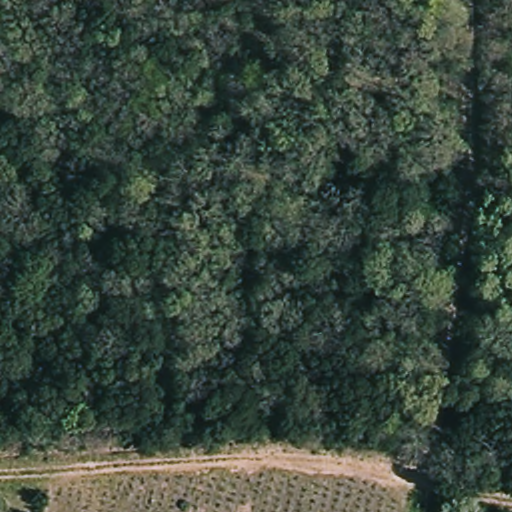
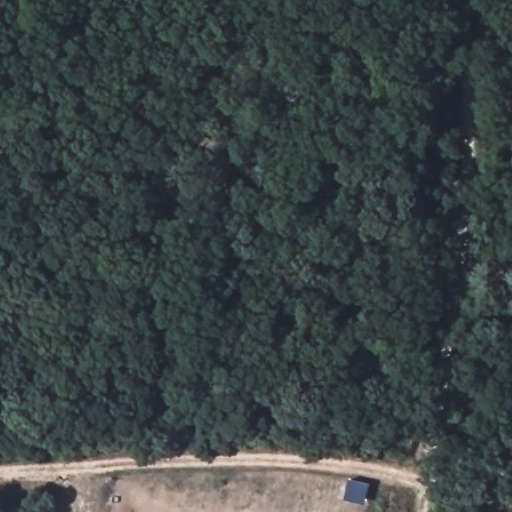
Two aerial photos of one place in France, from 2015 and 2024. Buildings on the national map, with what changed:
[]

